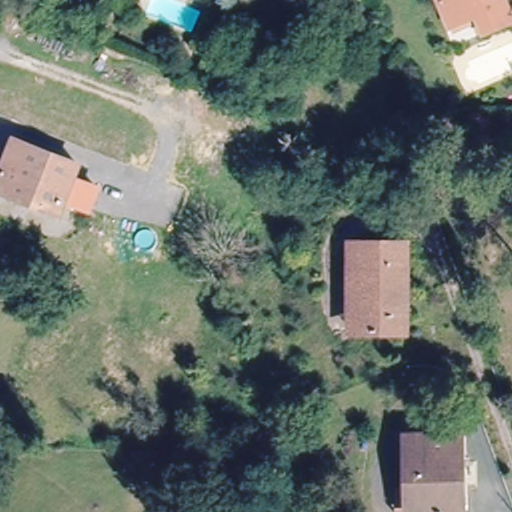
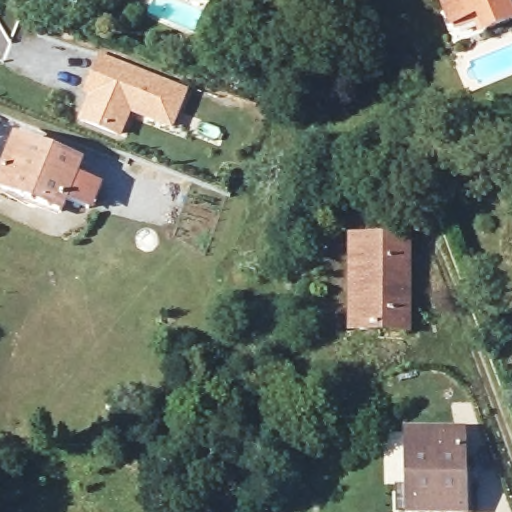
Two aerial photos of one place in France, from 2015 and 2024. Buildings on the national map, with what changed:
unchanged [(475,31),(469,17),(451,23),(442,0),(504,0),(511,17),(475,31)]
new [(109,131),(83,120),(93,95),(88,94),(89,91),(96,74),(103,57),(186,91),(171,127),(131,111),(120,136),(109,131)]
unchanged [(80,166),(61,214),(0,189),(0,179),(16,140),(80,166)]
unchanged [(352,242),(408,242),(408,331),(352,331),(352,328),(352,242)]
unchanged [(399,488),(407,488),(406,435),(412,435),(463,432),(465,512),(400,512),(399,488)]

